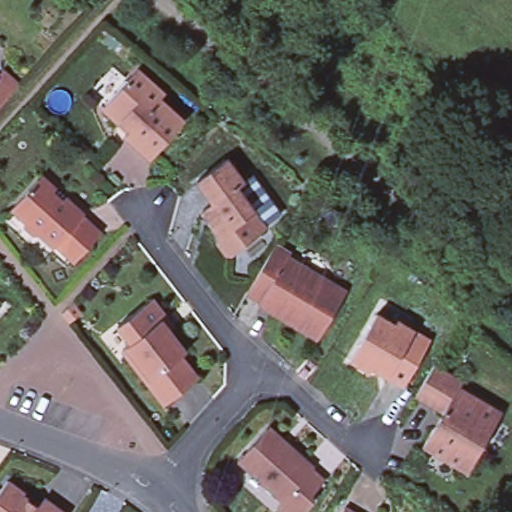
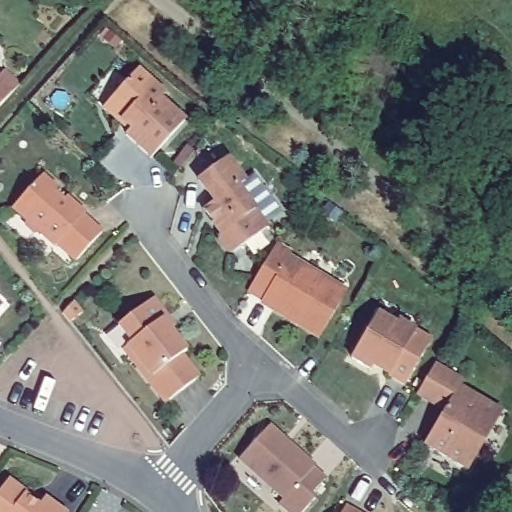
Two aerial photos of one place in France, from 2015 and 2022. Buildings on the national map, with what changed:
unchanged [(1,73),(8,66),(22,80),(16,86),(0,104),(0,72),(1,73)]
unchanged [(141,71),(167,95),(162,100),(185,122),(183,124),(178,130),(153,158),(129,136),(132,132),(106,109),(128,85),(133,80),(141,71)]
unchanged [(198,211),(207,205),(190,183),(216,164),(219,161),(227,171),(237,184),(241,180),(246,176),(259,192),(275,214),(258,226),(260,229),(227,255),(221,254),(212,244),(214,237),(206,227),(195,214),(198,211)]
unchanged [(78,260),(60,242),(57,245),(41,231),(36,231),(29,225),(30,220),(16,206),(41,180),(45,175),(69,197),(86,213),(84,215),(103,234),(78,260)]
unchanged [(267,302),(251,292),(279,245),(295,255),(293,258),(349,293),(322,339),(288,318),(265,304),(267,302)]
unchanged [(77,300),(87,312),(73,325),(64,314),(77,300)]
unchanged [(173,320),(167,323),(191,354),(187,358),(203,380),(171,406),(128,352),(122,357),(109,340),(124,328),(158,302),(173,320)]
unchanged [(4,307),(0,311),(0,304),(4,307)]
unchanged [(368,370),(349,358),(375,314),(393,325),(396,320),(428,340),(402,384),(386,375),(388,371),(373,362),(368,370)]
unchanged [(432,367),(460,385),(456,391),(443,413),(415,397),(432,367)]
unchanged [(499,417),(464,472),(422,448),(432,432),(435,431),(440,431),(444,425),(441,421),(440,418),(443,413),(456,391),(499,417)]
unchanged [(291,443),(315,465),(313,467),(325,478),(310,495),(314,499),(302,512),(288,512),(279,503),(284,497),(240,457),(268,427),(288,445),(291,443)]
unchanged [(25,496),(40,507),(47,500),(63,512),(0,512),(0,494),(9,481),(27,495),(25,496)]
unchanged [(350,512),(345,512),(346,510),(350,512)]

